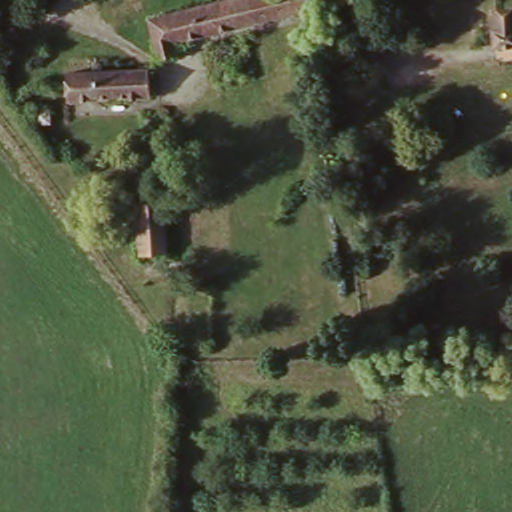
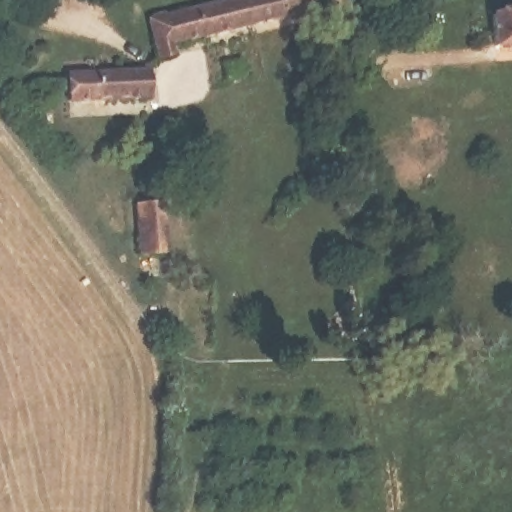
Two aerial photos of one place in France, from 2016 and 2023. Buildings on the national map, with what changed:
unchanged [(180,39),(184,52),(152,61),(145,23),(235,0),(301,0),(304,10),(180,39)]
unchanged [(491,11),(512,8),(512,54),(499,56),(491,11)]
unchanged [(152,102),(68,105),(64,74),(148,72),(152,102)]
unchanged [(164,252),(138,254),(129,207),(158,203),(164,252)]

